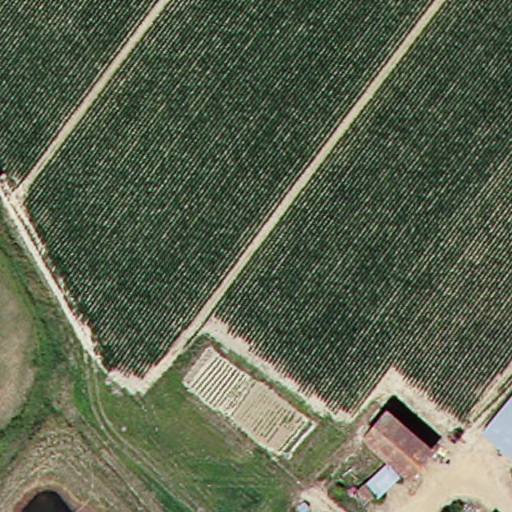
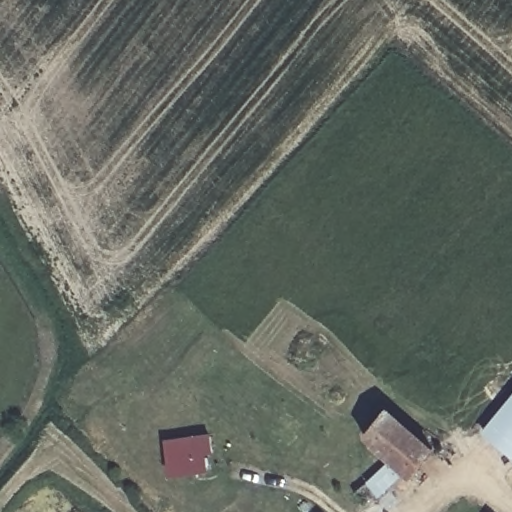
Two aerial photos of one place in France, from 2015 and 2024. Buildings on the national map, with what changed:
unchanged [(503,457),(471,431),(512,382),(512,447),(503,457)]
unchanged [(365,437),(353,428),(376,405),(388,415),(424,445),(402,470),(365,437)]
new [(169,477),(164,440),(207,433),(212,470),(169,477)]
unchanged [(362,488),(353,498),(343,490),(351,480),(362,488)]

